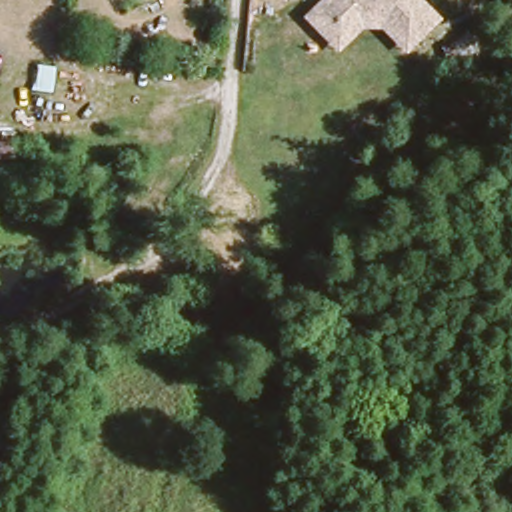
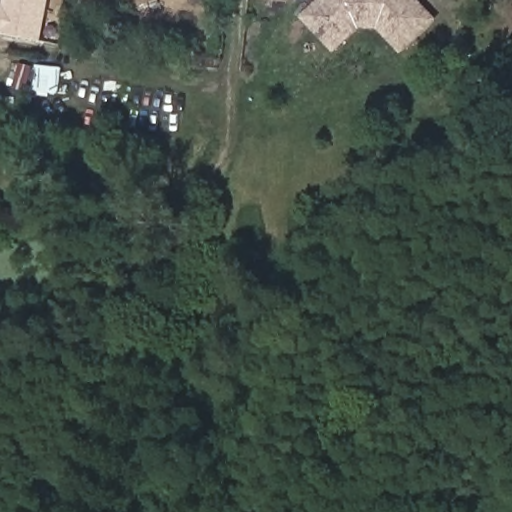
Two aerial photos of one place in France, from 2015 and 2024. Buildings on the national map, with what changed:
new [(44,46),(4,40),(0,36),(0,5),(4,6),(6,0),(50,0),(44,46)]
unchanged [(439,19),(401,54),(381,30),(357,29),(336,52),(302,14),(317,0),(421,0),(439,19)]
unchanged [(9,161),(0,160),(0,140),(10,140),(9,161)]

